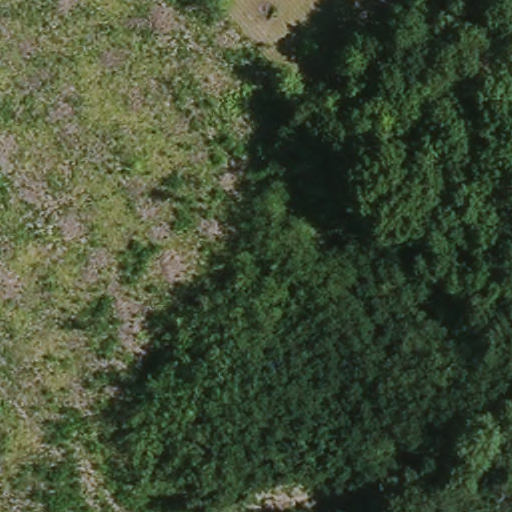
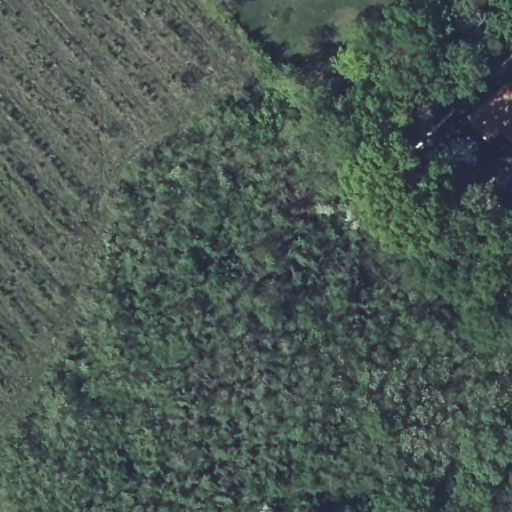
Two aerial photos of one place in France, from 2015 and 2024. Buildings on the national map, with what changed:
new [(502,130),(487,142),(469,120),(507,86),(512,92),(512,141),(502,130)]

